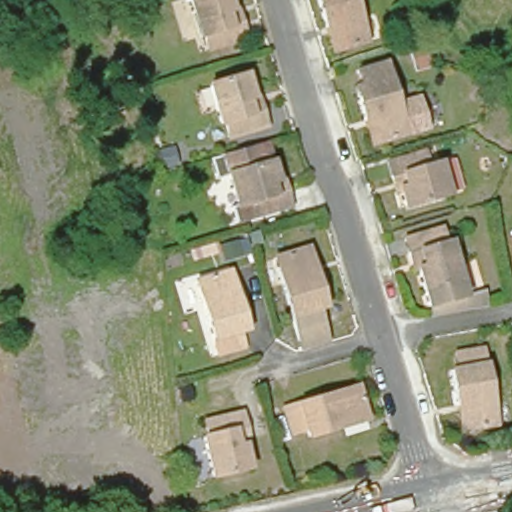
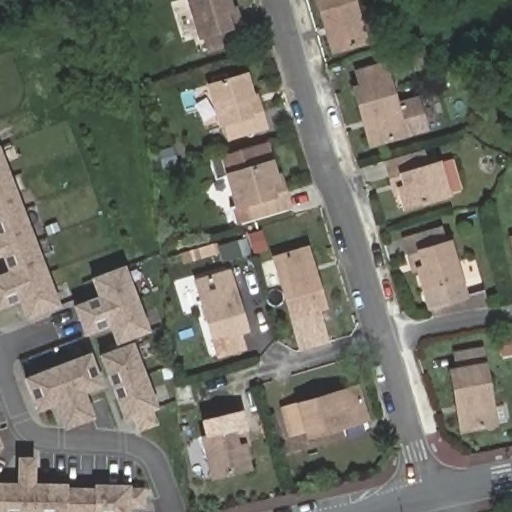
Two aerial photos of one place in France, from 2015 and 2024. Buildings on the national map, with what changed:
unchanged [(193,27),(188,28),(180,0),(224,0),(228,14),(233,30),(197,41),(193,27)]
unchanged [(318,0),(354,0),(365,41),(339,49),(332,51),(325,26),(318,0)]
demolished [(37,54),(62,53),(64,66),(39,68),(37,54)]
unchanged [(364,124),(354,89),(362,86),(357,70),(383,62),(405,136),(378,144),(370,146),(364,124)]
unchanged [(229,138),(224,125),(219,126),(207,86),(244,75),(251,98),(256,96),(261,113),(265,127),(229,138)]
new [(61,307),(27,320),(19,301),(0,308),(0,274),(8,271),(3,257),(0,258),(0,144),(61,307)]
unchanged [(289,196),(293,210),(255,222),(244,225),(236,228),(232,212),(240,210),(230,177),(217,181),(211,163),(247,153),(269,146),(274,164),(279,180),(284,179),(289,196)]
unchanged [(388,179),(383,162),(420,151),(425,166),(436,163),(445,195),(402,208),(398,193),(393,195),(388,179)]
unchanged [(501,230),(512,228),(512,266),(508,267),(501,230)]
unchanged [(443,232),(448,245),(452,244),(464,285),(427,295),(420,270),(416,271),(411,255),(407,243),(443,232)]
unchanged [(313,306),(317,322),(290,329),(269,256),(296,248),(302,246),(309,270),(319,304),(313,306)]
new [(125,264),(151,331),(117,344),(109,328),(85,336),(72,306),(97,295),(90,279),(125,264)]
unchanged [(235,329),(238,345),(212,352),(190,279),(217,271),(224,270),(230,294),(240,328),(235,329)]
new [(133,342),(158,407),(152,410),(158,424),(139,432),(133,417),(124,420),(99,354),(133,342)]
unchanged [(455,403),(448,368),(455,367),(452,352),(480,347),(493,420),(465,425),(459,426),(455,403)]
new [(104,387),(86,394),(95,418),(64,429),(55,405),(39,411),(25,376),(90,351),(104,387)]
unchanged [(343,431),(309,441),(307,435),(293,438),(285,412),(357,390),(365,416),(368,424),(343,431)]
unchanged [(202,471),(192,431),(198,429),(194,415),(231,406),(235,421),(239,437),(235,438),(240,462),(202,471)]
new [(2,447),(0,447),(0,439),(2,447)]
new [(17,482),(17,456),(35,455),(36,482),(67,483),(67,487),(66,512),(0,512),(0,481),(17,482)]
new [(94,487),(94,483),(131,484),(131,487),(146,487),(145,508),(130,507),(130,512),(66,512),(67,487),(94,487)]

